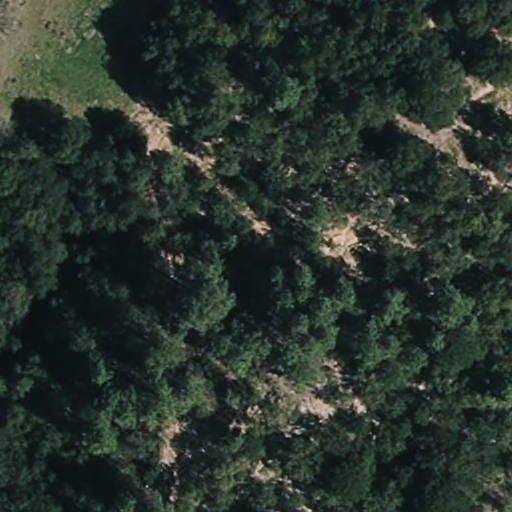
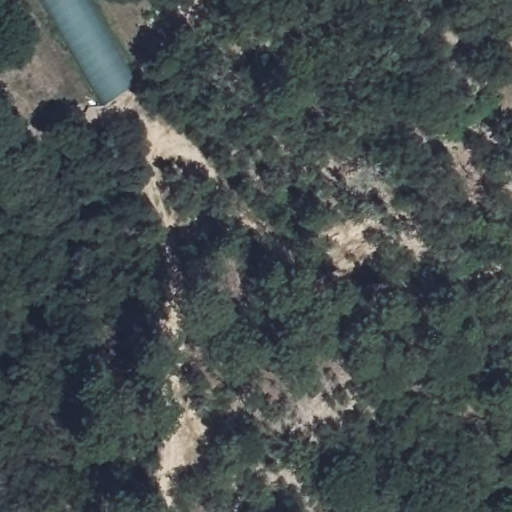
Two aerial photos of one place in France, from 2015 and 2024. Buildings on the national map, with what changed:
new [(105,106),(44,0),(87,0),(136,84),(105,106)]

